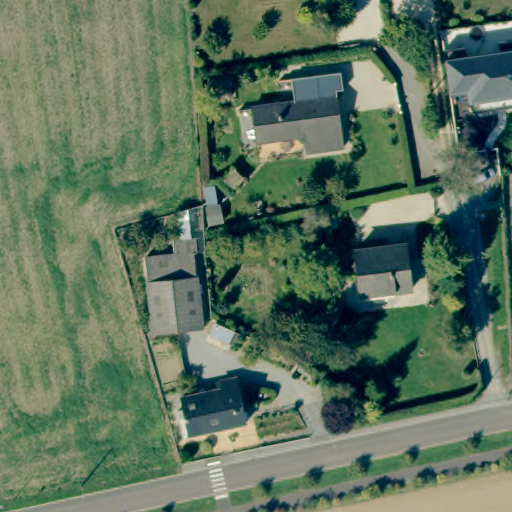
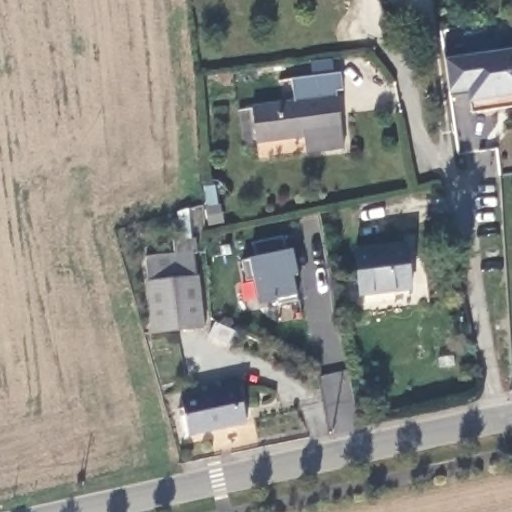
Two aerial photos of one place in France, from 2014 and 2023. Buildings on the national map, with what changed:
unchanged [(494,112),(482,114),(476,109),(473,93),(455,96),(454,93),(448,55),(468,52),(470,62),(505,56),(503,46),(512,45),(512,104),(498,105),(494,112)]
unchanged [(336,68),(340,86),(333,87),(342,143),(303,149),(300,130),(252,138),(247,106),(290,99),(286,76),(336,68)]
new [(256,257),(252,243),(281,238),(284,251),(291,250),(297,275),(291,277),(296,298),(257,304),(248,258),(256,257)]
unchanged [(412,283),(360,291),(353,247),(406,240),(412,283)]
unchanged [(199,327),(152,331),(146,255),(192,252),(199,327)]
unchanged [(182,408),(179,392),(220,382),(218,375),(235,371),(236,377),(245,414),(187,428),(182,408)]

